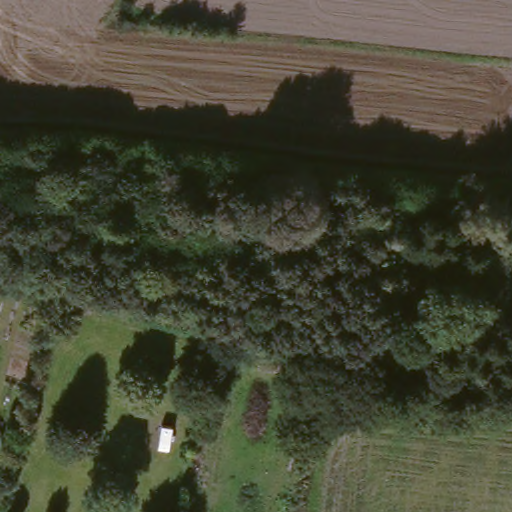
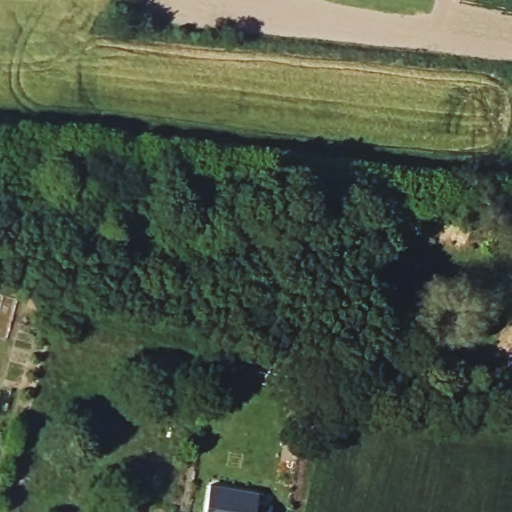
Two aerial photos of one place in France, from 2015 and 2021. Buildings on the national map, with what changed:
new [(257,492),(256,502),(270,505),(269,512),(204,512),(209,483),(257,492)]

